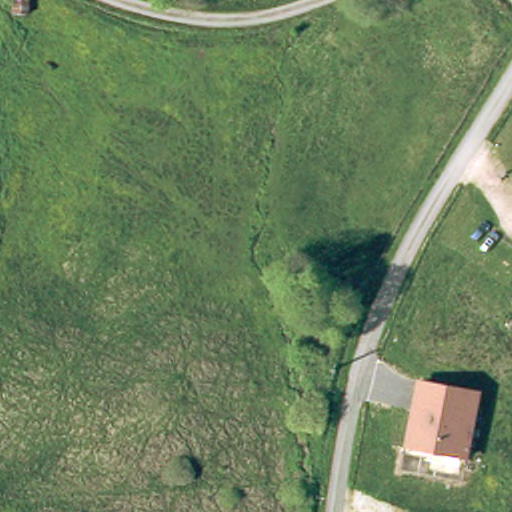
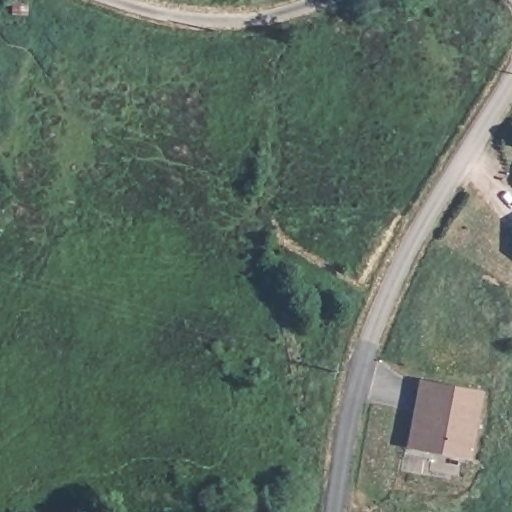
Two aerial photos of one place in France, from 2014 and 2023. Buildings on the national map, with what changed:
unchanged [(417,380),(483,392),(469,460),(405,447),(417,380)]

